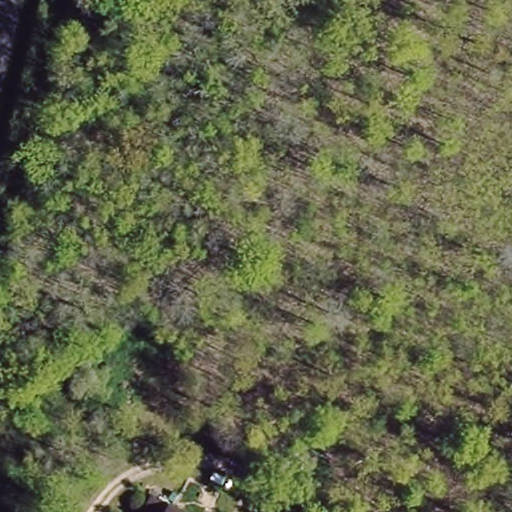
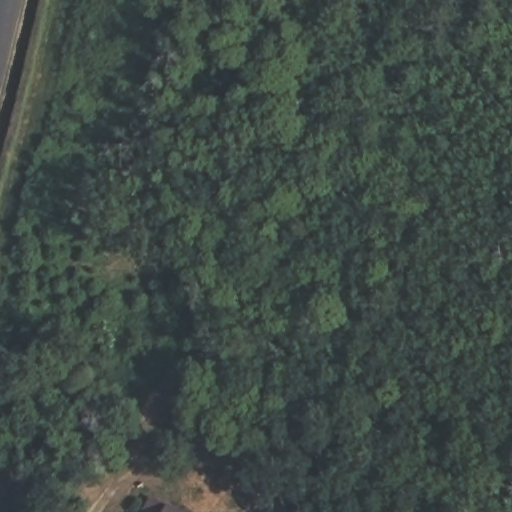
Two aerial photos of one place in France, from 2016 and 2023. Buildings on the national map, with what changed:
unchanged [(181,512),(171,512),(174,507),(181,512)]

